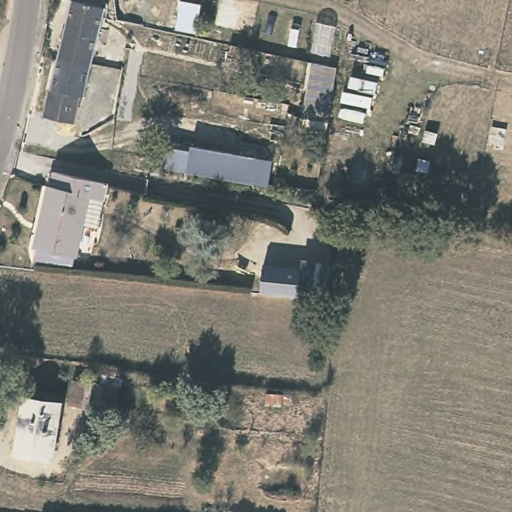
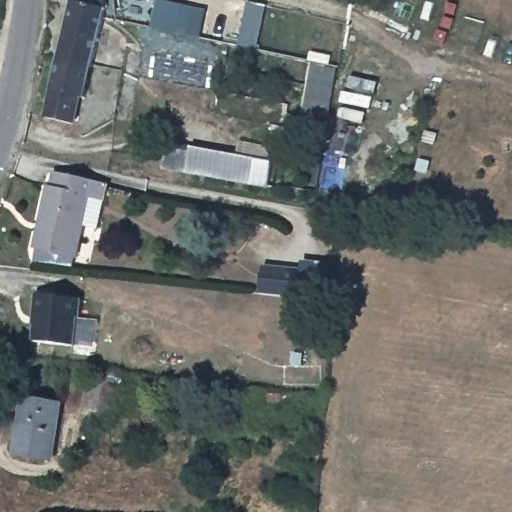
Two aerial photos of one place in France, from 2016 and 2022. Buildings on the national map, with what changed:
unchanged [(77,0),(107,0),(104,11),(110,12),(107,27),(103,44),(68,36),(77,0)]
unchanged [(96,70),(95,76),(60,68),(68,36),(103,44),(96,70)]
unchanged [(89,103),(82,102),(74,131),(47,125),(60,68),(95,76),(89,103)]
unchanged [(251,166),(245,191),(182,176),(159,170),(165,150),(187,156),(188,151),(251,166)]
unchanged [(107,186),(103,206),(87,203),(76,262),(34,255),(45,191),(49,192),(51,177),(87,183),(107,186)]
unchanged [(295,266),(293,293),(263,291),(256,290),(258,262),(295,266)]
new [(78,320),(75,346),(33,340),(35,325),(33,325),(38,293),(82,297),(79,319),(78,320)]
unchanged [(60,410),(52,461),(18,456),(20,442),(17,441),(23,403),(60,410)]

